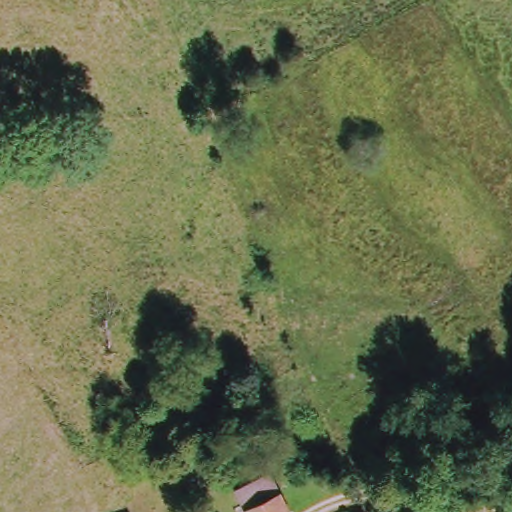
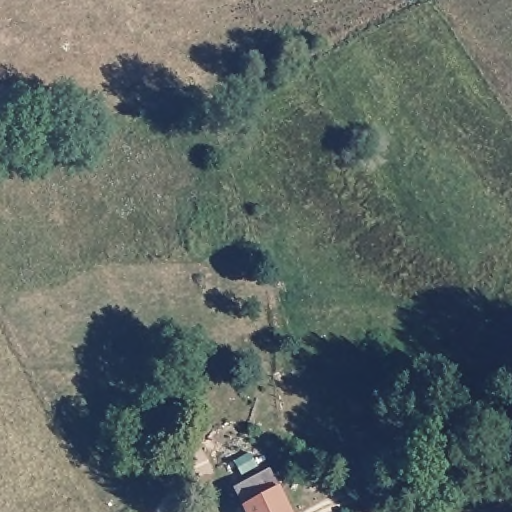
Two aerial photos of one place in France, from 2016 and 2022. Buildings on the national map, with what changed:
unchanged [(264,473),(287,512),(241,512),(231,492),(264,473)]

